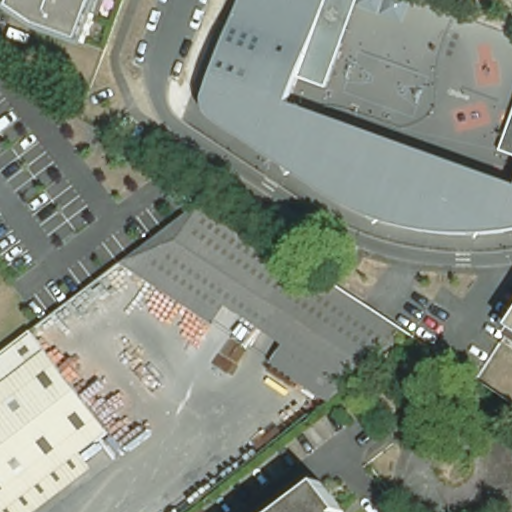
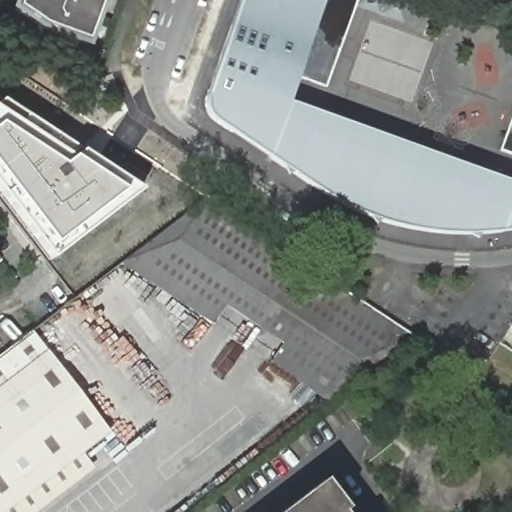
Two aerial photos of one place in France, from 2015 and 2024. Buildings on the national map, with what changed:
unchanged [(86,49),(42,33),(16,9),(19,0),(103,0),(86,49)]
unchanged [(211,122),(208,118),(206,113),(205,108),(205,104),(206,99),(242,0),(327,0),(297,82),(288,108),(512,189),(512,237),(497,239),(492,239),(485,240),(479,240),(473,241),(467,241),(461,241),(455,241),(448,240),(442,240),(436,239),(430,239),(423,238),(417,237),(412,236),(406,234),(400,233),(393,231),(387,229),(382,227),(376,225),(370,223),(365,221),(358,218),(353,216),(347,213),(342,210),(337,207),(331,204),(326,201),(321,198),(217,129),(217,128),(213,125),(211,122)]
unchanged [(326,92),(297,82),(327,0),(359,0),(326,92)]
new [(145,195),(51,261),(0,194),(0,103),(2,102),(145,195)]
unchanged [(512,125),(512,159),(501,155),(512,125)]
unchanged [(192,192),(195,194),(220,211),(246,228),(271,245),(283,254),(296,262),(322,279),(347,297),(372,314),(397,331),(399,332),(315,397),(109,256),(108,256),(192,192)]
unchanged [(31,327),(38,321),(95,395),(104,388),(125,415),(108,428),(80,450),(0,512),(0,350),(31,327)]
unchanged [(30,512),(0,512),(80,450),(91,465),(30,512)]
unchanged [(343,512),(294,512),(326,488),(343,512)]

